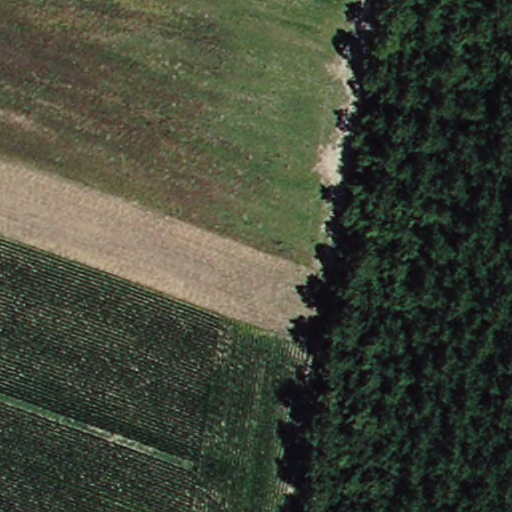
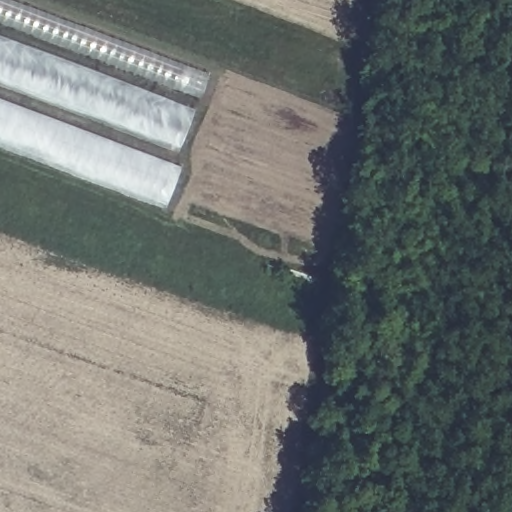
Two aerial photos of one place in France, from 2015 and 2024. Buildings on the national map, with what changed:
new [(196,99),(0,26),(0,0),(5,0),(206,76),(196,99)]
new [(177,152),(0,87),(0,38),(191,110),(177,152)]
new [(179,169),(164,209),(0,147),(0,101),(179,169)]

